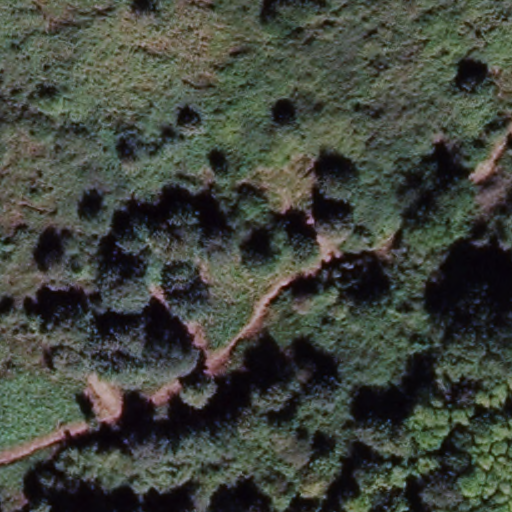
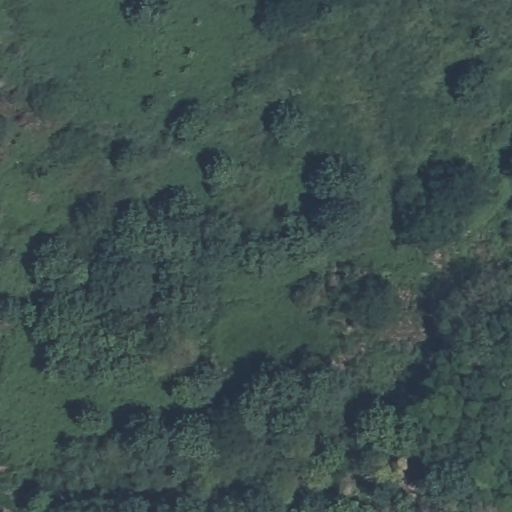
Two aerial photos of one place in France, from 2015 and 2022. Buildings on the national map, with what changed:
[]

